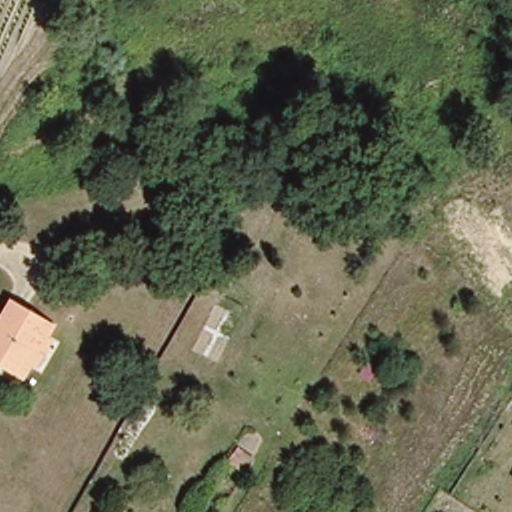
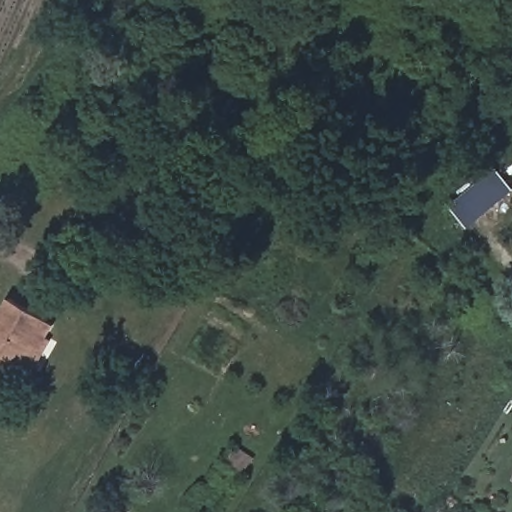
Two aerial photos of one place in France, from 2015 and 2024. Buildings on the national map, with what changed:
new [(467,228),(450,206),(497,168),(512,187),(512,193),(467,228)]
unchanged [(47,321),(16,375),(0,366),(0,318),(10,300),(47,321)]
unchanged [(225,463),(233,451),(249,461),(241,473),(225,463)]

